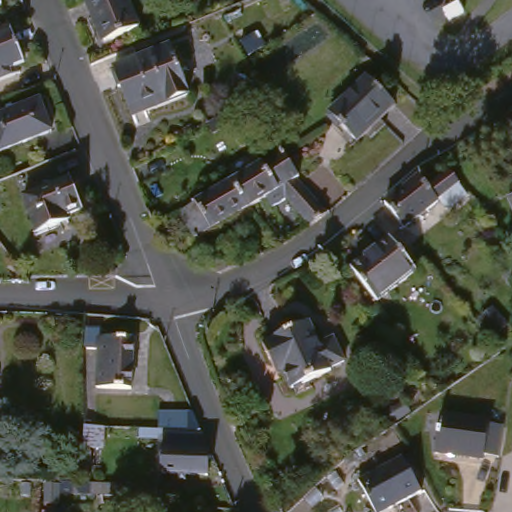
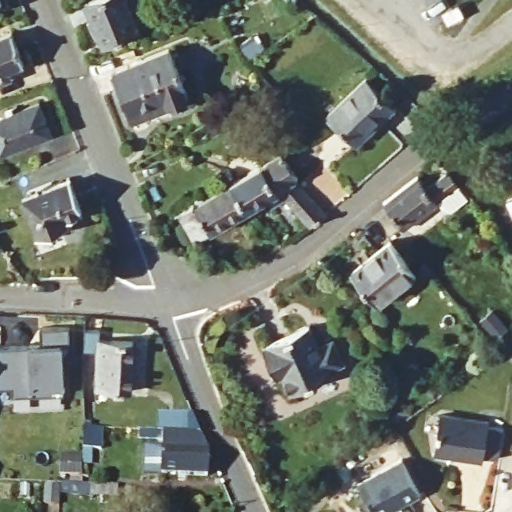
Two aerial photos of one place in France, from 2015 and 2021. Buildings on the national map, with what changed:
unchanged [(83,7),(101,0),(123,0),(137,33),(99,48),(83,7)]
unchanged [(21,66),(6,71),(9,79),(0,83),(0,39),(9,35),(21,66)]
unchanged [(129,121),(118,91),(115,93),(109,78),(112,77),(111,74),(167,51),(186,100),(129,121)]
unchanged [(326,112),(364,76),(391,104),(354,141),(326,112)]
unchanged [(48,136),(0,155),(0,119),(34,105),(48,136)]
unchanged [(280,189),(252,206),(249,207),(233,180),(263,162),(264,161),(283,150),(299,177),(297,179),(327,214),(311,226),(282,188),(280,189)]
unchanged [(424,191),(445,174),(454,185),(400,231),(380,208),(414,181),(424,191)]
unchanged [(181,213),(233,180),(249,207),(203,236),(217,261),(224,257),(232,270),(221,274),(218,276),(215,271),(181,213)]
unchanged [(71,188),(84,218),(66,225),(69,231),(39,243),(23,207),(71,188)]
unchanged [(504,207),(503,202),(512,198),(512,222),(510,222),(504,207)]
unchanged [(347,275),(386,244),(412,275),(372,307),(347,275)]
new [(39,345),(39,327),(69,327),(69,345),(62,346),(63,383),(63,392),(32,393),(11,393),(11,387),(0,387),(0,348),(29,346),(39,345)]
unchanged [(304,329),(312,347),(328,340),(339,365),(324,372),(326,376),(287,394),(279,375),(271,379),(259,349),(304,329)]
unchanged [(97,393),(97,374),(98,354),(88,353),(89,331),(101,331),(100,343),(134,344),(133,393),(97,393)]
unchanged [(152,417),(189,417),(196,436),(152,434),(152,417)]
unchanged [(478,459),(477,464),(431,458),(437,419),(483,425),(482,429),(496,431),(492,461),(478,459)]
unchanged [(79,457),(78,487),(72,486),(73,438),(73,430),(79,430),(80,438),(91,438),(90,458),(79,457)]
unchanged [(202,480),(156,479),(158,439),(198,439),(204,454),(202,480)]
unchanged [(398,459),(416,495),(382,512),(368,512),(354,481),(398,459)]
unchanged [(511,482),(512,481),(512,484),(511,482)]
unchanged [(82,503),(82,491),(107,492),(106,505),(82,503)]

